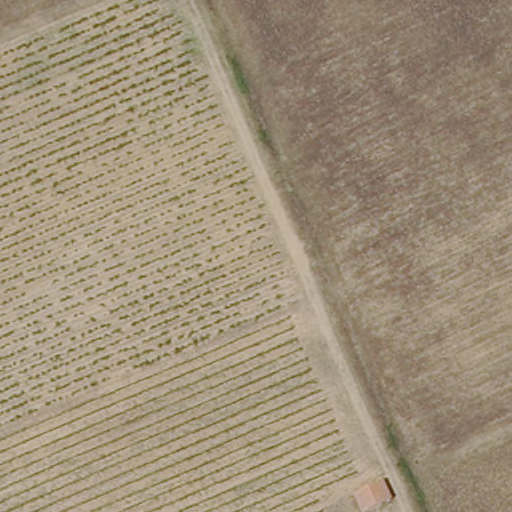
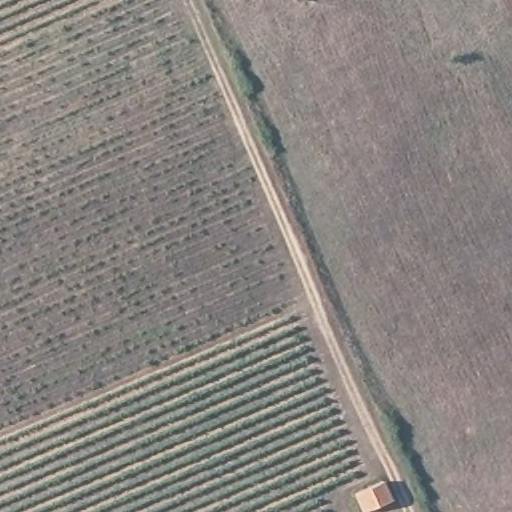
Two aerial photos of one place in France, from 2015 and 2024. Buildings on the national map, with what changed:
unchanged [(390,490),(395,504),(373,512),(363,512),(359,501),(390,490)]

